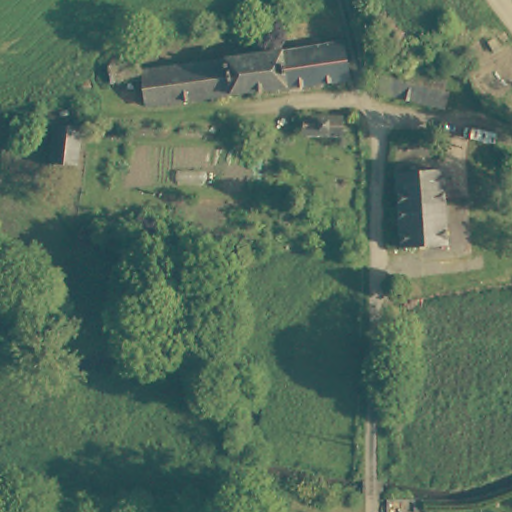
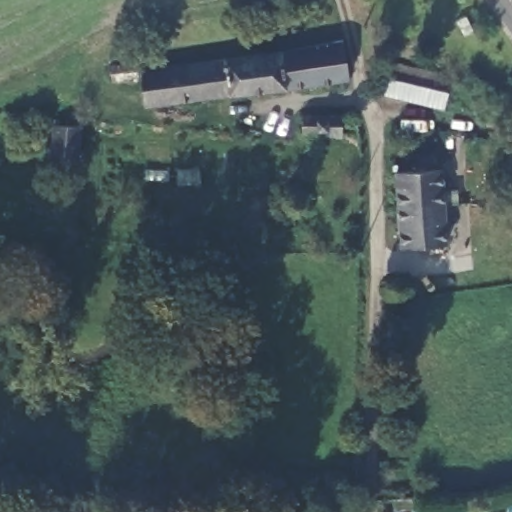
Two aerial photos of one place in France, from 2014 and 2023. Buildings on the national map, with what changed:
unchanged [(323,45),(328,45),(347,42),(348,59),(351,79),(339,76),(338,79),(333,80),(323,81),(320,81),(316,50),(316,46),(323,45)]
unchanged [(315,46),(316,46),(316,50),(320,81),(146,103),(142,69),(315,46)]
unchanged [(395,63),(437,73),(434,88),(452,92),(447,108),(392,96),(376,92),(378,79),(379,76),(391,79),(395,63)]
unchanged [(338,115),(344,115),(355,115),(357,115),(357,130),(356,137),(347,136),(319,135),(321,114),(338,115)]
unchanged [(92,127),(82,169),(55,164),(57,159),(65,123),(92,127)]
unchanged [(402,170),(448,166),(451,238),(451,241),(404,245),(402,184),(401,170),(402,170)]

